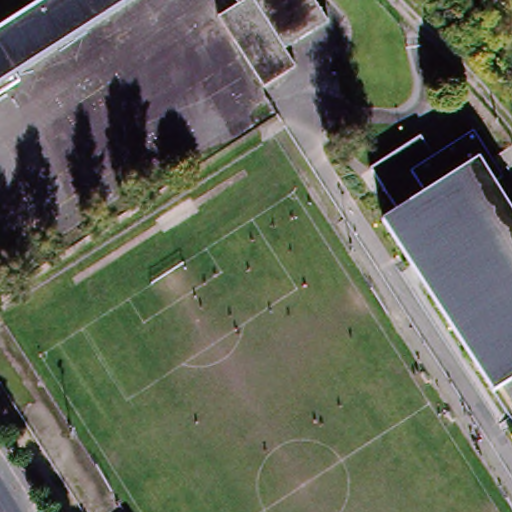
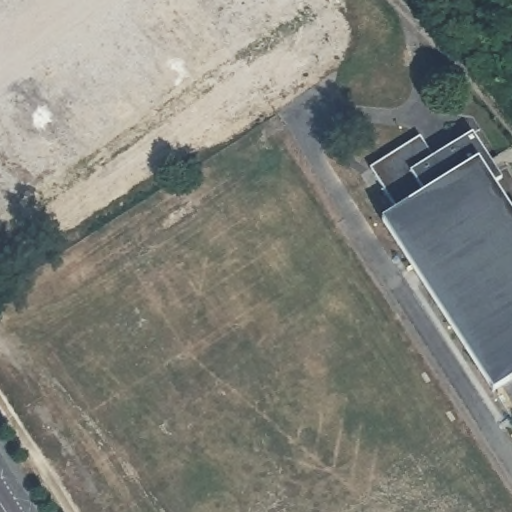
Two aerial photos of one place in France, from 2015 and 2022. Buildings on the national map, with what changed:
demolished [(18,79),(22,85),(0,100),(0,33),(52,0),(141,0),(18,79)]
demolished [(245,0),(310,0),(326,27),(325,28),(250,76),(215,20),(235,7),(245,0)]
demolished [(325,28),(326,27),(337,45),(260,94),(250,76),(325,28)]
unchanged [(473,139),(502,184),(497,187),(482,165),(447,186),(434,165),(433,164),(473,139)]
unchanged [(434,165),(385,196),(370,175),(420,144),(433,164),(434,165)]
unchanged [(434,165),(447,186),(482,165),(497,187),(512,211),(512,383),(489,398),(381,229),(398,217),(385,196),(434,165)]

